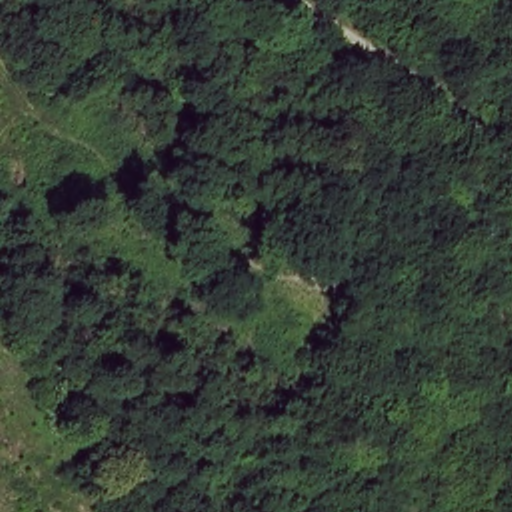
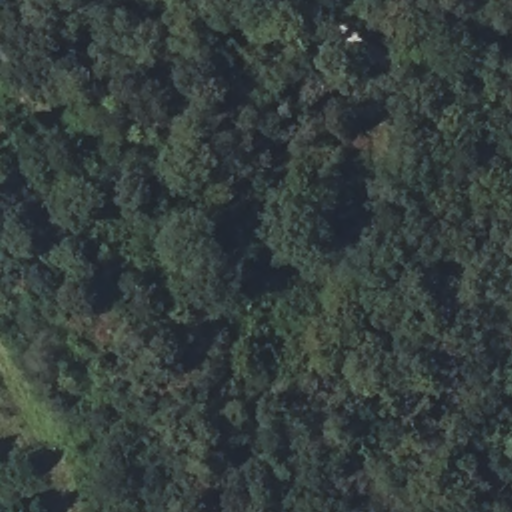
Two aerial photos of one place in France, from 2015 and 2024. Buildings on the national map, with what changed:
unchanged [(397,35),(352,0),(418,0),(423,4),(397,35)]

